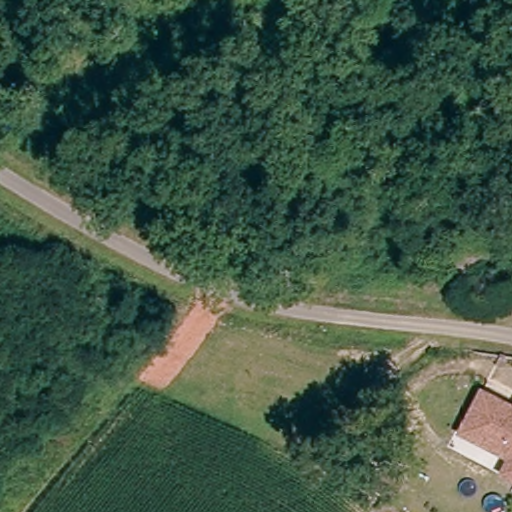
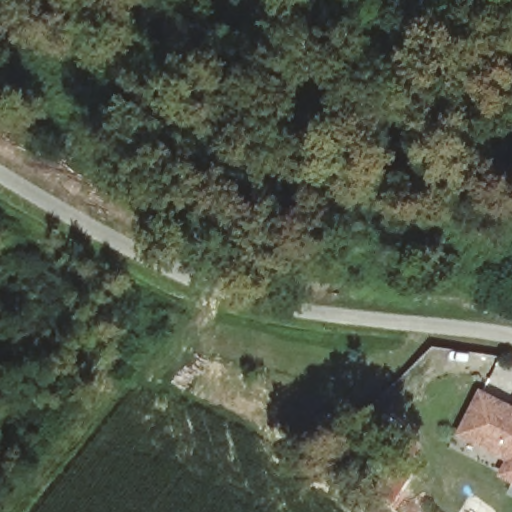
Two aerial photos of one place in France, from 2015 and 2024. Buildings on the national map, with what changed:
unchanged [(512,387),(512,462),(463,432),(492,377),(512,387)]

